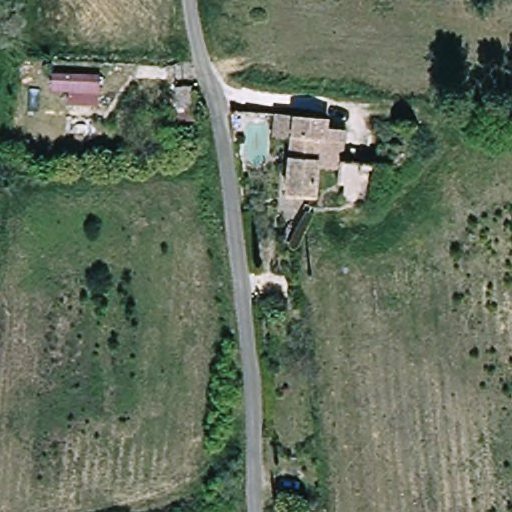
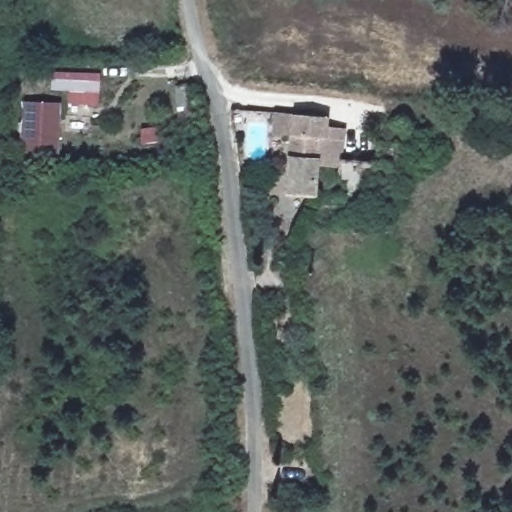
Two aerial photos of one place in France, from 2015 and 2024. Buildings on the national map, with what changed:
unchanged [(52,91),(53,74),(100,76),(97,104),(69,102),(70,93),(52,91)]
new [(62,103),(59,160),(21,159),(23,103),(62,103)]
unchanged [(333,116),(331,126),(347,126),(348,167),(323,168),(321,196),(287,194),(291,140),(277,139),(279,114),(333,116)]

